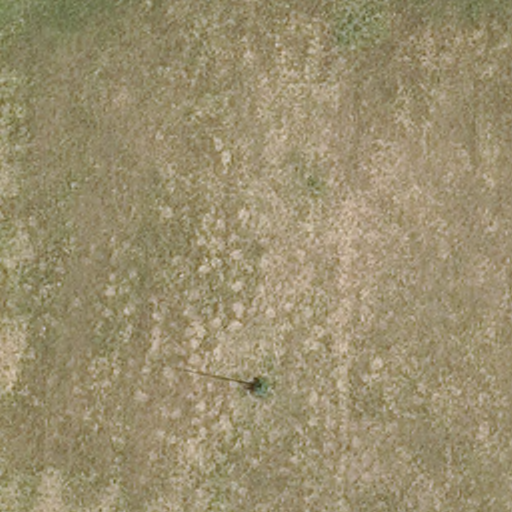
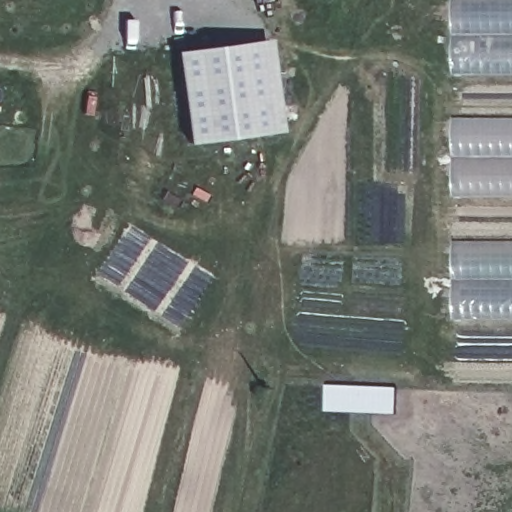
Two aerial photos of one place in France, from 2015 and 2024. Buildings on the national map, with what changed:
new [(451,73),(452,0),(512,0),(512,73),(451,73)]
new [(257,40),(269,130),(189,141),(176,52),(257,40)]
new [(512,116),(512,197),(452,197),(451,116),(512,116)]
new [(512,240),(512,319),(453,320),(453,240),(512,240)]
new [(325,414),(326,387),(398,389),(397,416),(325,414)]

